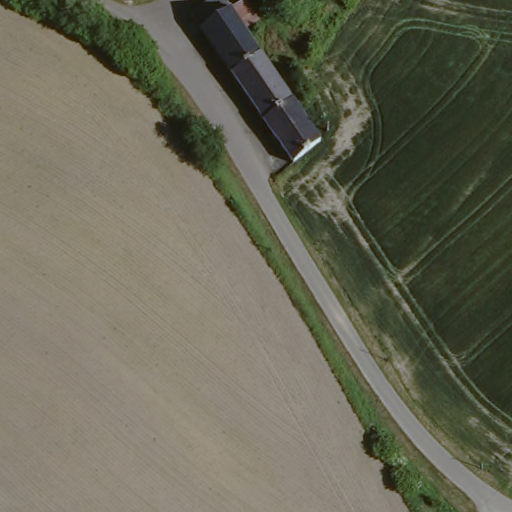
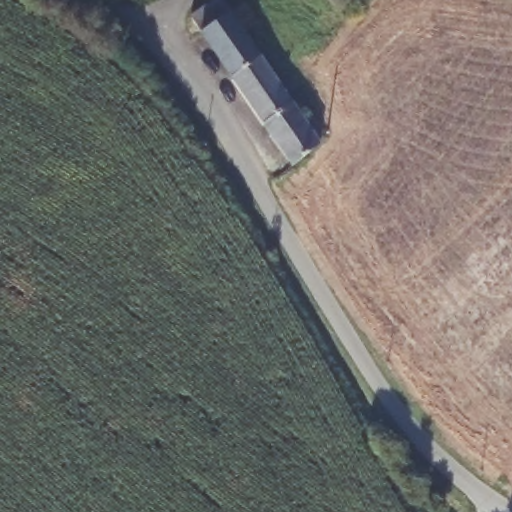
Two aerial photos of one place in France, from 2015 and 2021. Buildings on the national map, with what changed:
unchanged [(259,25),(245,35),(264,62),(233,83),(201,36),(191,21),(222,1),(233,15),(245,6),(259,25)]
unchanged [(264,62),(294,108),(264,129),(233,83),(264,62)]
unchanged [(294,108),(320,150),(293,171),(264,129),(294,108)]

